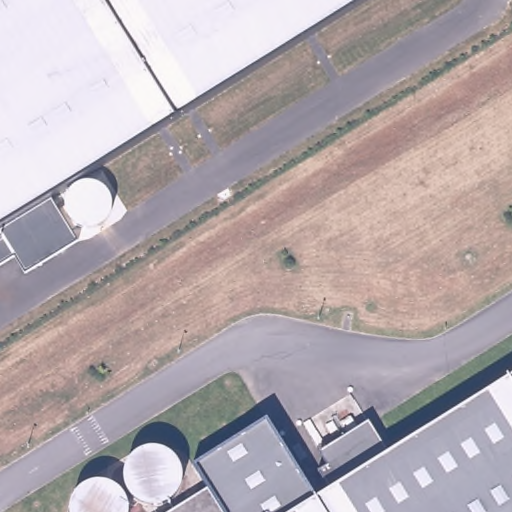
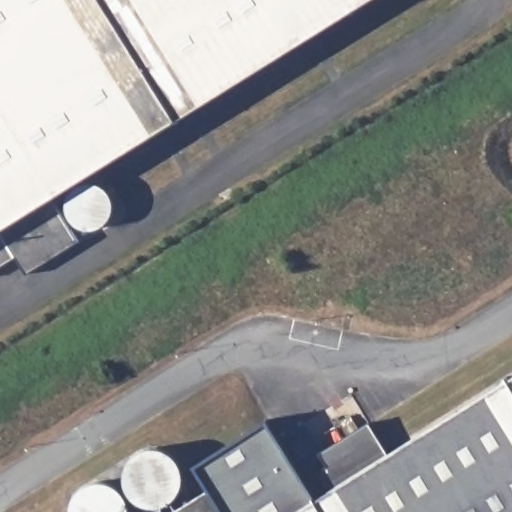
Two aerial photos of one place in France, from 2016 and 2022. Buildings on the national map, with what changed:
unchanged [(74,242),(26,275),(14,255),(0,265),(0,0),(360,0),(43,197),(74,242)]
unchanged [(512,512),(172,512),(207,490),(192,466),(266,420),(316,499),(329,491),(387,455),(512,377),(512,512)]
unchanged [(317,472),(327,465),(319,452),(367,422),(387,455),(329,491),(317,472)]

